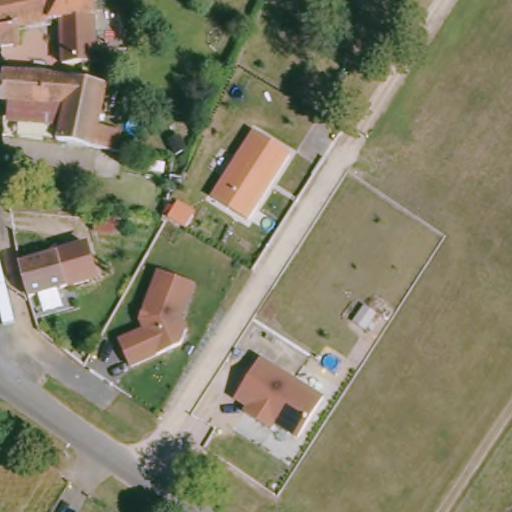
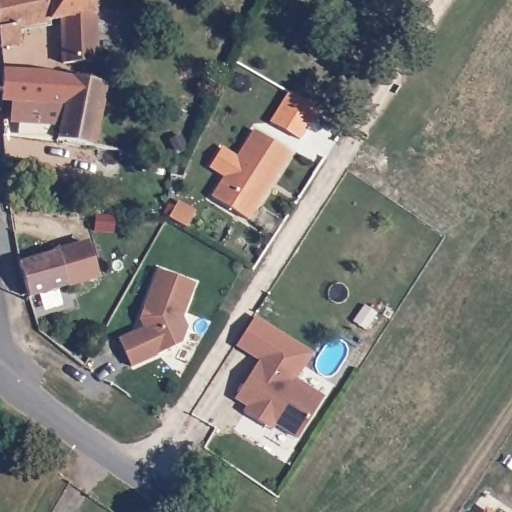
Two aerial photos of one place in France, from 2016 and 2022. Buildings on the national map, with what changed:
unchanged [(54,20),(15,24),(17,41),(0,44),(0,0),(93,0),(95,61),(58,64),(54,20)]
unchanged [(100,106),(96,143),(47,133),(48,121),(10,112),(10,96),(0,94),(0,64),(103,80),(100,106)]
unchanged [(142,114),(137,151),(96,143),(100,106),(142,114)]
unchanged [(247,223),(212,201),(255,133),(290,155),(247,223)]
unchanged [(83,244),(92,279),(23,297),(15,274),(12,263),(83,244)]
unchanged [(135,367),(121,342),(146,328),(143,324),(148,308),(144,307),(152,281),(155,269),(192,280),(185,301),(182,314),(188,326),(183,341),(135,367)]
new [(313,354),(297,379),(260,356),(257,360),(237,347),(255,318),(313,354)]
unchanged [(264,423),(243,410),(247,404),(235,396),(260,356),(323,396),(297,436),(274,421),(270,427),(264,423)]
new [(488,512),(485,512),(486,510),(488,512)]

